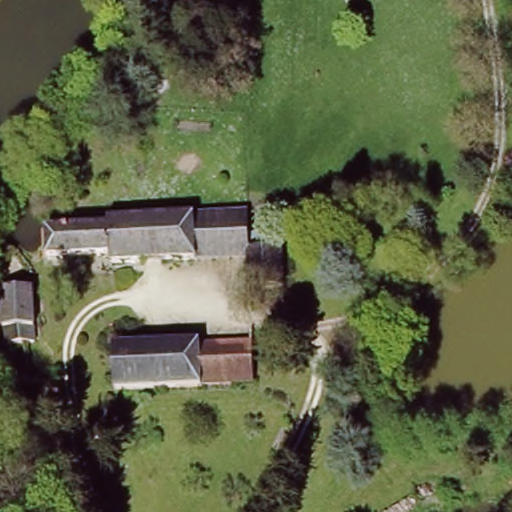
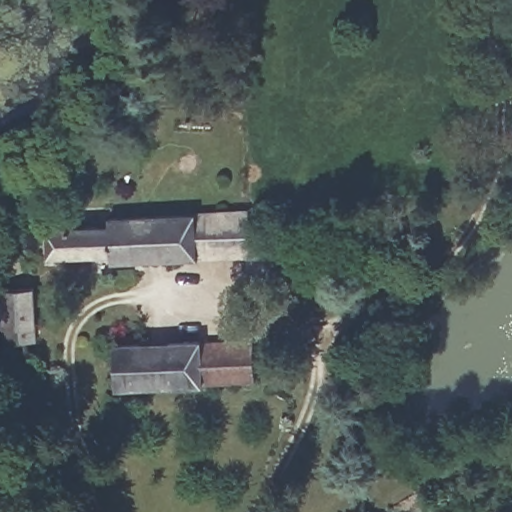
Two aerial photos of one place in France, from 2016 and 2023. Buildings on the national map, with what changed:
unchanged [(197,215),(249,212),(251,249),(251,256),(201,258),(197,215)]
unchanged [(114,226),(114,219),(197,215),(201,258),(116,262),(114,256),(53,258),(52,230),(114,226)]
unchanged [(251,249),(286,247),(288,286),(252,289),(251,256),(251,249)]
unchanged [(16,290),(47,288),(48,329),(18,330),(16,290)]
unchanged [(114,339),(199,335),(199,338),(250,335),(251,376),(200,378),(200,381),(115,385),(114,339)]

